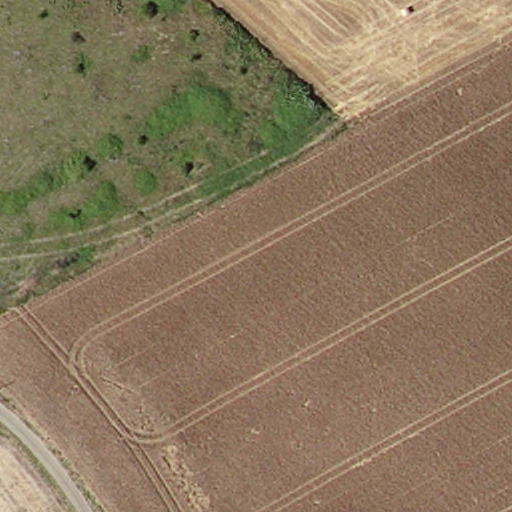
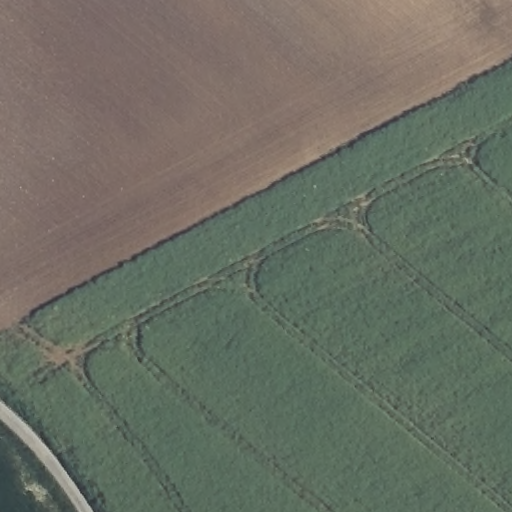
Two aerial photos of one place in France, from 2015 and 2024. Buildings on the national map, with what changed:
[]

